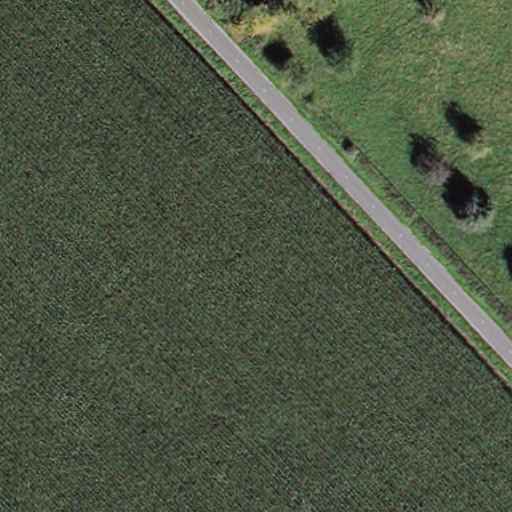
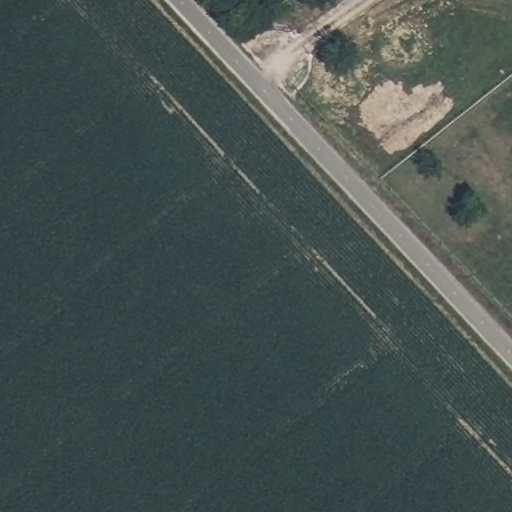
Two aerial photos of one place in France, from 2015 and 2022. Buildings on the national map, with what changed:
[]

